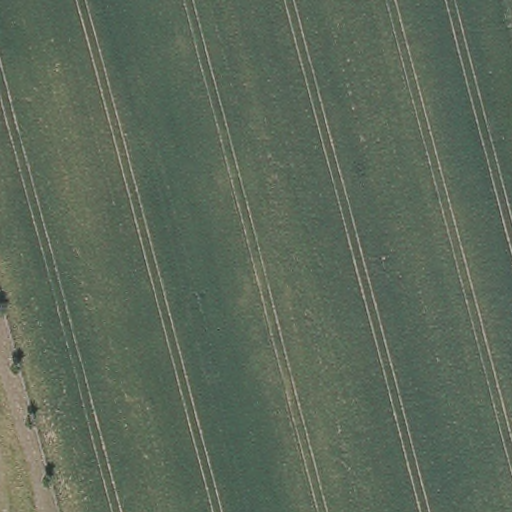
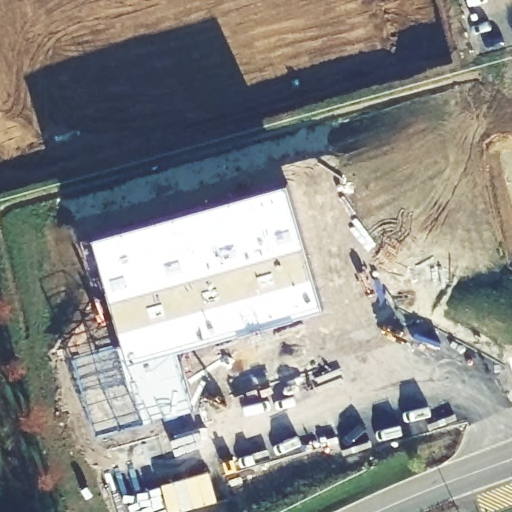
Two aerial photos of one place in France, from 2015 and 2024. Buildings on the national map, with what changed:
new [(125,341),(95,235),(289,180),(326,306),(178,347),(193,409),(96,435),(74,357),(125,341)]
new [(217,501),(175,512),(169,512),(161,485),(209,471),(217,501)]

